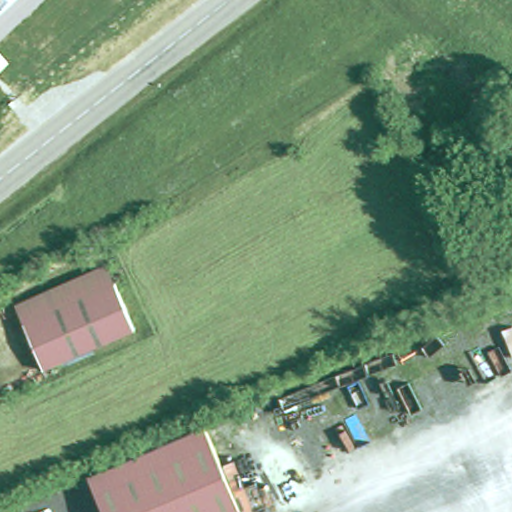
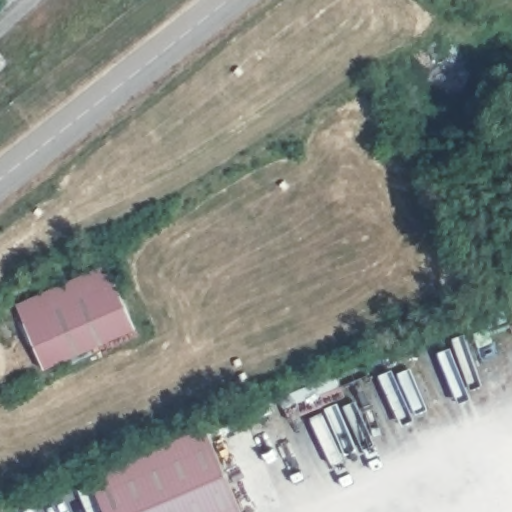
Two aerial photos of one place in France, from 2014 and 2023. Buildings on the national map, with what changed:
unchanged [(23,324),(15,305),(108,264),(115,282),(23,324)]
unchanged [(135,329),(43,370),(23,324),(115,282),(135,329)]
unchanged [(90,477),(206,427),(243,512),(105,512),(90,477)]

